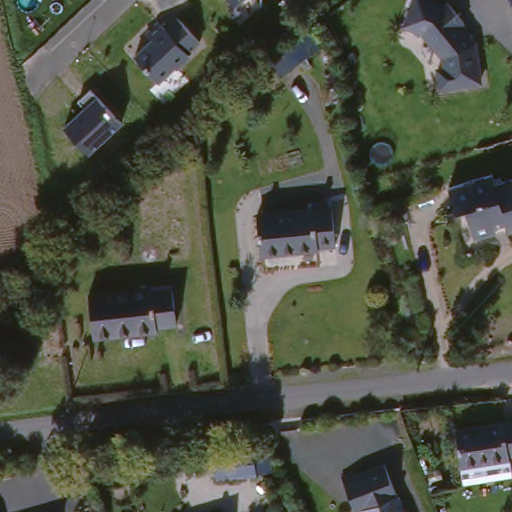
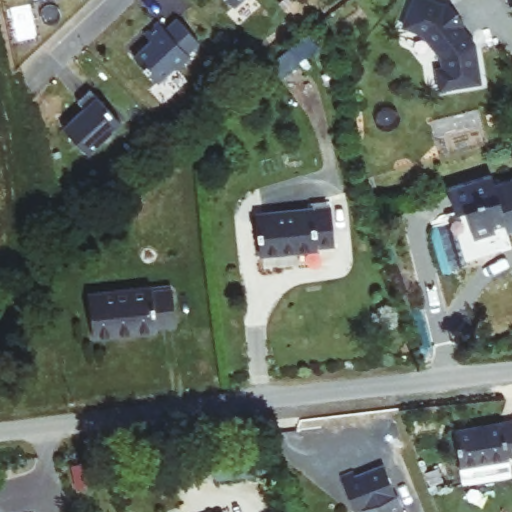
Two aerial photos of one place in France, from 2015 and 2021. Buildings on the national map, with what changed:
unchanged [(242,8),(234,0),(251,0),(242,8)]
unchanged [(450,1),(452,0),(454,0),(469,18),(466,22),(481,41),(488,79),(445,85),(443,67),(450,65),(449,54),(427,31),(409,23),(417,0),(446,0),(450,1)]
unchanged [(155,84),(132,57),(172,20),(195,42),(155,84)]
unchanged [(87,155),(60,129),(92,95),(121,122),(87,155)]
unchanged [(512,177),(512,229),(502,231),(500,224),(489,227),(491,236),(460,244),(453,215),(444,217),(439,194),(475,183),(476,188),(512,177)]
unchanged [(255,256),(250,216),(322,206),(327,246),(255,256)]
unchanged [(149,300),(170,298),(172,325),(155,327),(156,336),(90,343),(86,300),(147,293),(149,300)]
unchanged [(446,431),(510,422),(512,442),(512,462),(453,472),(446,431)]
unchanged [(250,451),(252,479),(217,484),(215,455),(250,451)]
unchanged [(360,488),(362,493),(389,482),(401,512),(353,512),(345,492),(360,488)]

